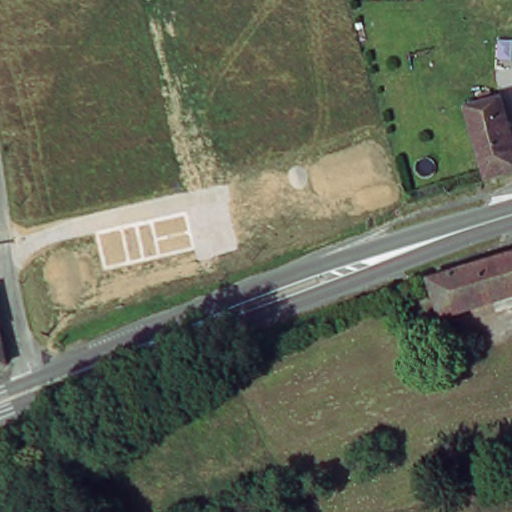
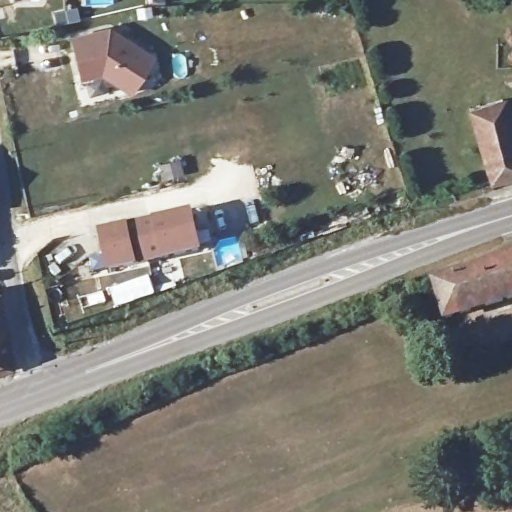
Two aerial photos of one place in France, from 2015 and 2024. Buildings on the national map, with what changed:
new [(129,95),(99,76),(79,80),(69,35),(109,27),(153,56),(129,95)]
unchanged [(471,115),(500,104),(512,134),(512,172),(495,178),(471,115)]
new [(107,273),(97,232),(191,210),(200,253),(107,273)]
unchanged [(429,283),(512,253),(512,304),(447,328),(429,283)]
unchanged [(0,367),(0,328),(0,331),(6,365),(0,367)]

